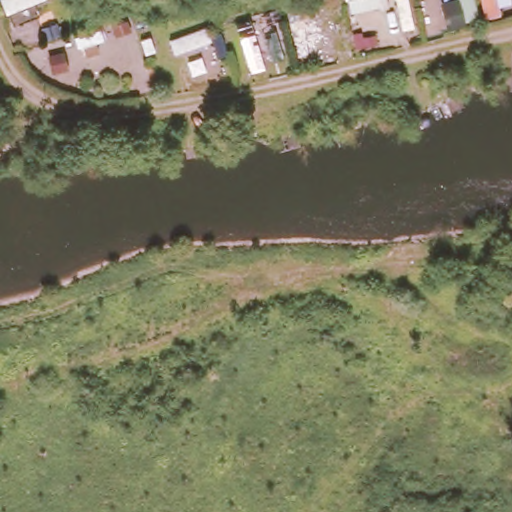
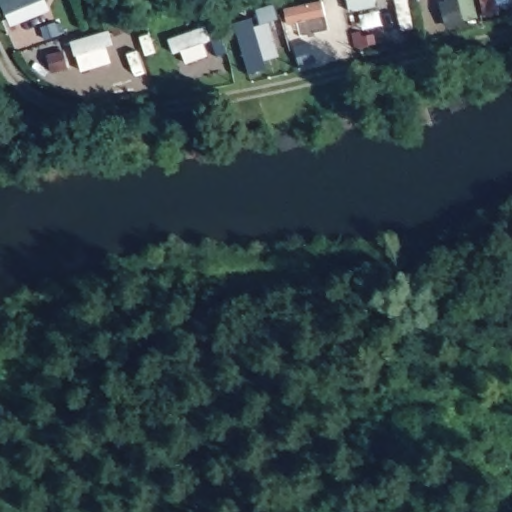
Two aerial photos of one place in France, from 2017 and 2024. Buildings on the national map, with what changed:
unchanged [(487,22),(481,0),(498,0),(502,17),(487,22)]
unchanged [(175,60),(169,43),(210,28),(215,42),(175,60)]

